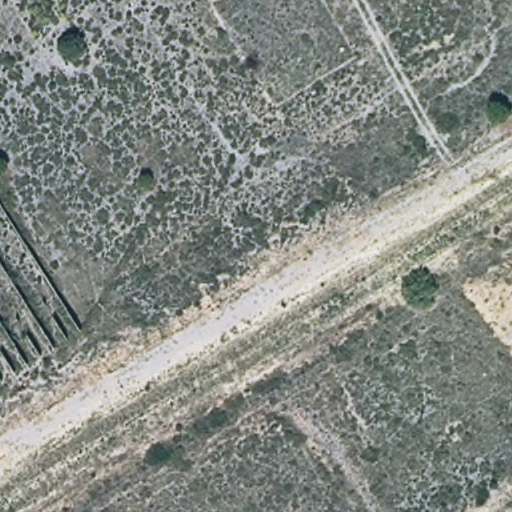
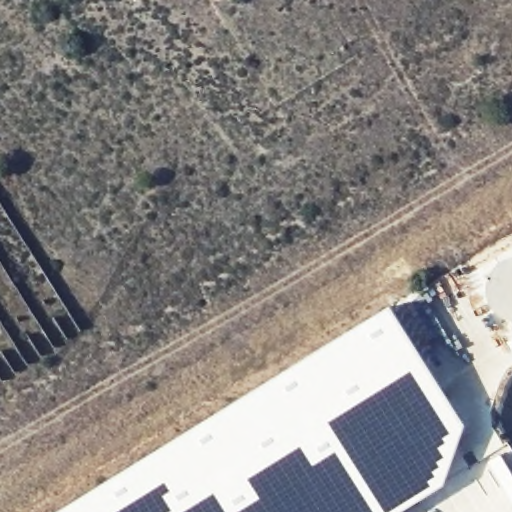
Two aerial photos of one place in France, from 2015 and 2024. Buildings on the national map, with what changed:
new [(87,494),(393,305),(467,426),(445,484),(402,512),(58,512),(87,494)]
new [(507,342),(512,338),(512,349),(507,342)]
new [(512,451),(512,507),(485,462),(501,451),(509,446),(512,451)]

